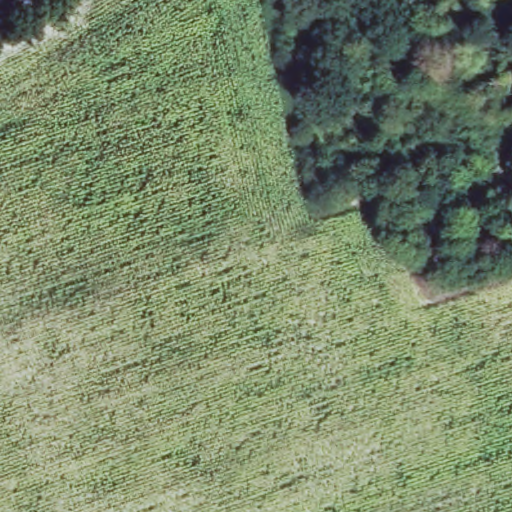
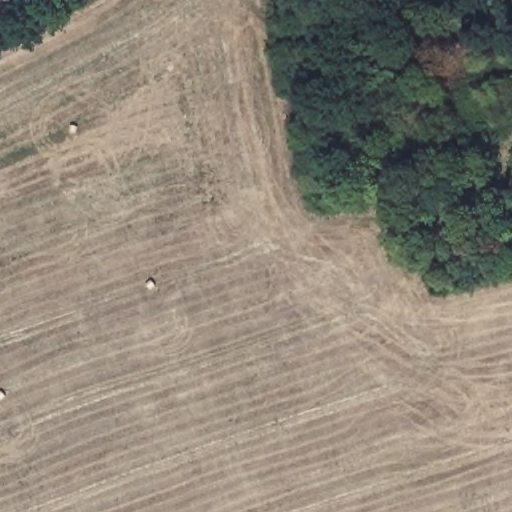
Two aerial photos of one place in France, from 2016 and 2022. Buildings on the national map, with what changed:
unchanged [(482,81),(512,72),(512,112),(496,118),(482,81)]

